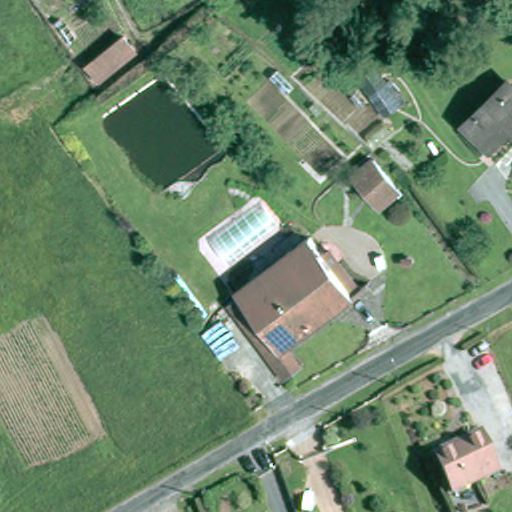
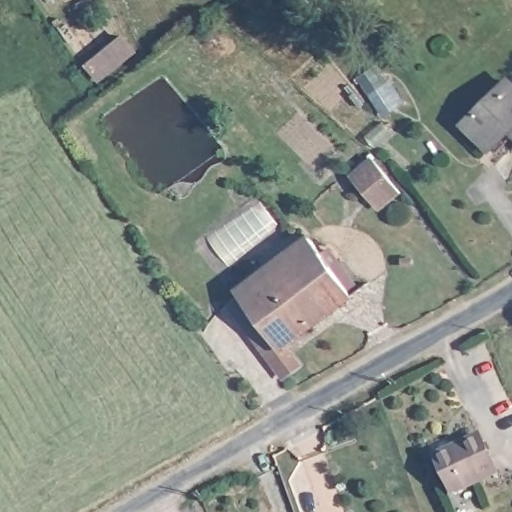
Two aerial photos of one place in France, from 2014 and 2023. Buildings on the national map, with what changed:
unchanged [(149,56),(114,85),(99,67),(134,38),(149,56)]
unchanged [(483,141),(467,119),(512,84),(512,85),(512,129),(511,128),(491,146),(483,141)]
unchanged [(353,173),(375,156),(400,190),(380,206),(353,173)]
unchanged [(332,260),(337,256),(362,289),(292,341),(310,363),(301,370),(241,290),(289,255),(286,251),(311,233),(332,260)]
unchanged [(481,432),(500,469),(456,492),(437,455),(481,432)]

